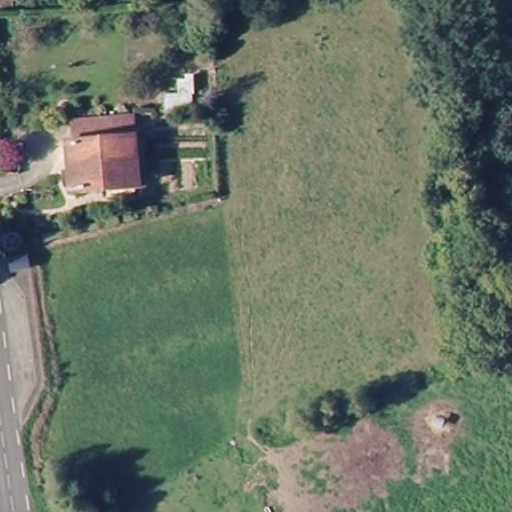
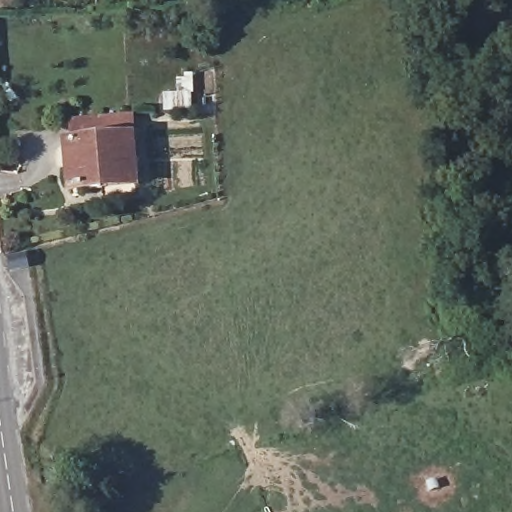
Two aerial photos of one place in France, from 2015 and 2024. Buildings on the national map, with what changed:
unchanged [(137,131),(137,179),(71,182),(69,134),(137,131)]

